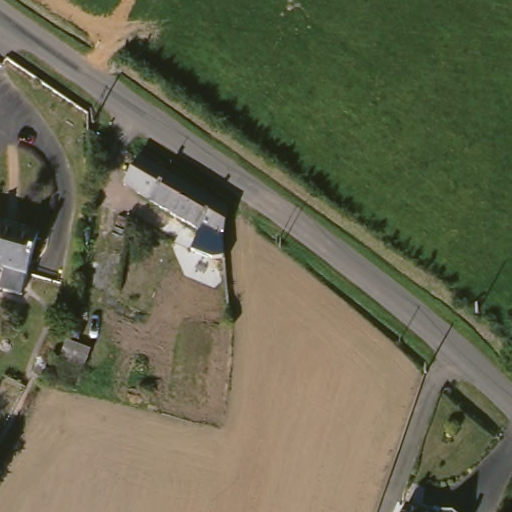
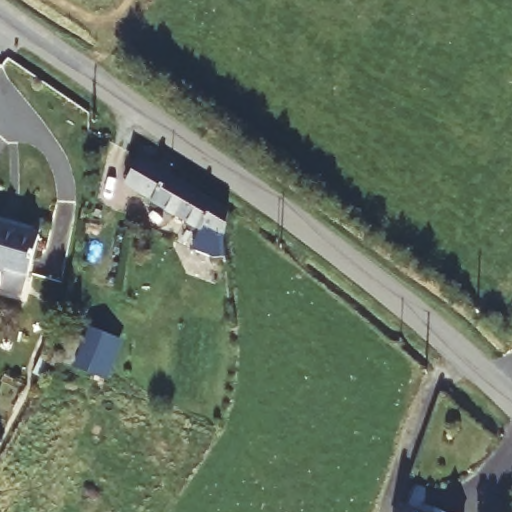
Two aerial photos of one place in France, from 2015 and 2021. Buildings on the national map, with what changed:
unchanged [(202,267),(206,234),(200,230),(199,230),(150,205),(158,191),(131,177),(140,161),(227,214),(216,236),(216,240),(215,270),(202,267)]
unchanged [(21,300),(0,294),(0,291),(4,277),(0,276),(0,231),(36,241),(26,283),(21,300)]
new [(121,340),(106,380),(75,367),(90,328),(121,340)]
unchanged [(72,344),(64,365),(55,361),(64,340),(72,344)]

